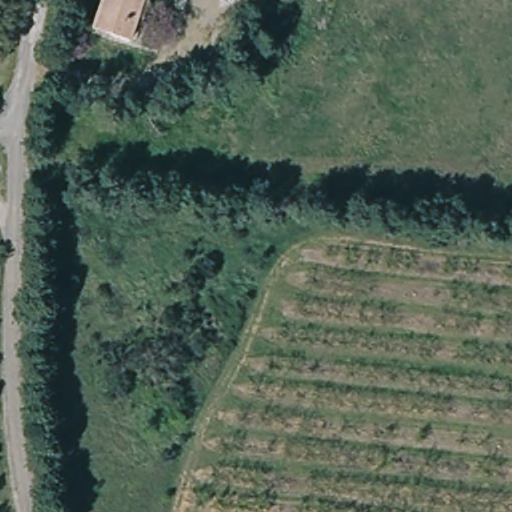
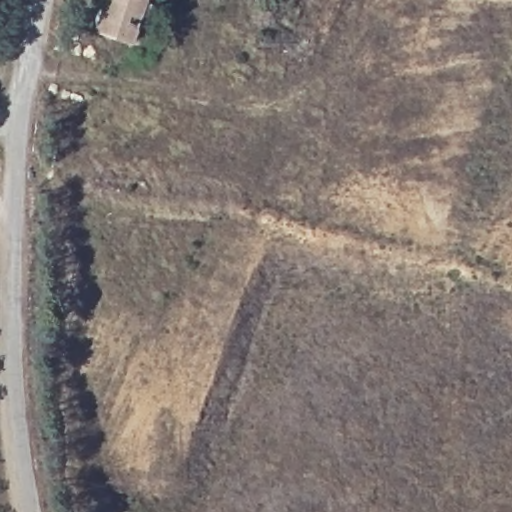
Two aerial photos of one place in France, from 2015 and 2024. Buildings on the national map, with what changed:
unchanged [(145,0),(138,44),(93,35),(99,0),(139,0),(145,0)]

